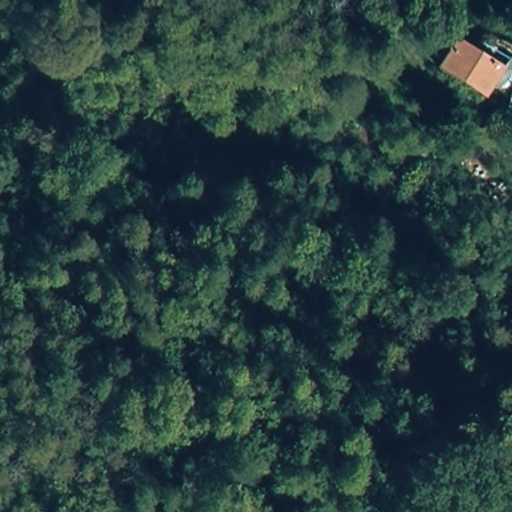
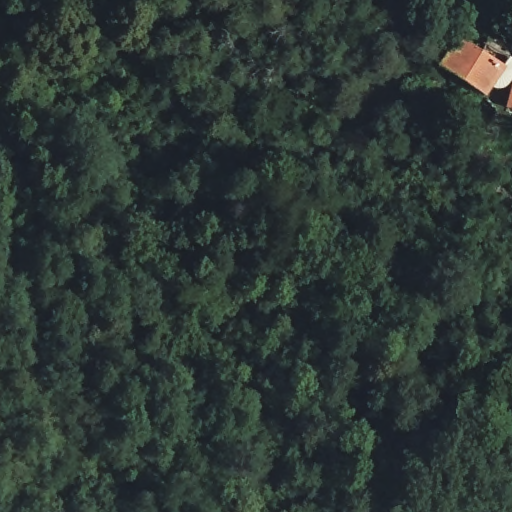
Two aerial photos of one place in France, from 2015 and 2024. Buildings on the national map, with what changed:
unchanged [(457,37),(508,70),(488,101),(438,69),(457,37)]

